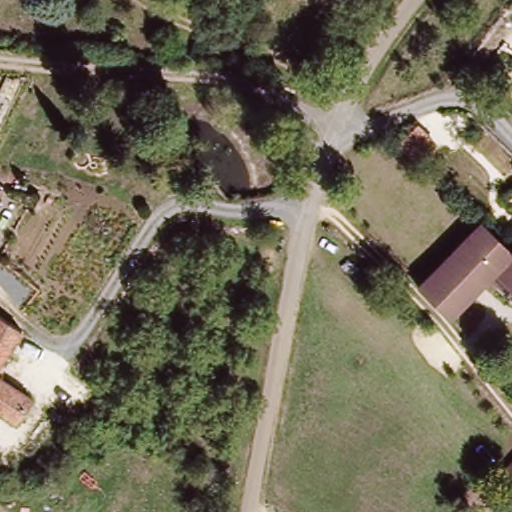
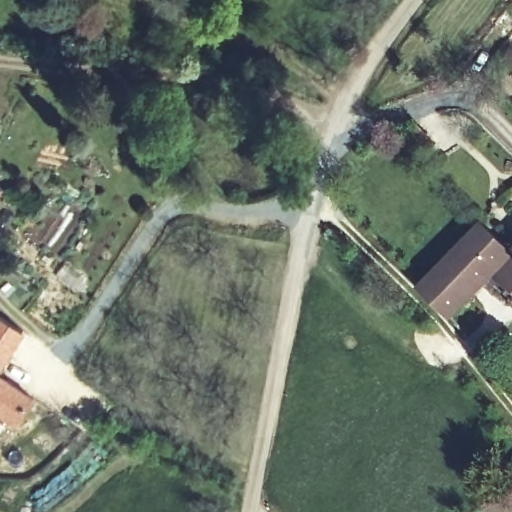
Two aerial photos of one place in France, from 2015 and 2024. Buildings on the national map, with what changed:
unchanged [(0,191),(0,187),(1,188),(0,191)]
unchanged [(494,282),(453,323),(422,291),(485,226),(512,252),(512,299),(494,282)]
unchanged [(0,376),(0,320),(19,333),(25,340),(0,376)]
unchanged [(79,380),(69,391),(60,383),(70,372),(79,380)]
unchanged [(18,431),(0,419),(0,380),(35,403),(18,431)]
unchanged [(508,483),(500,473),(512,460),(512,487),(508,483)]

